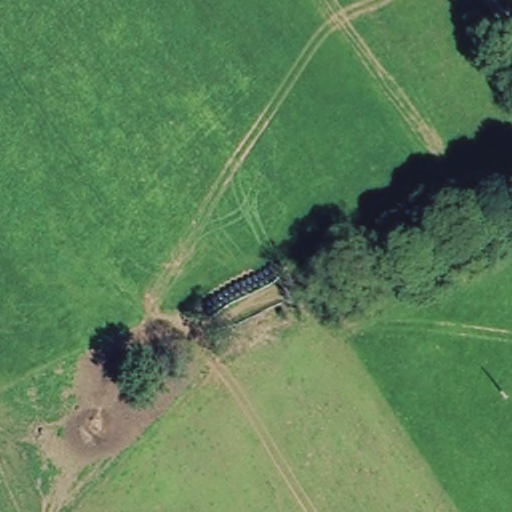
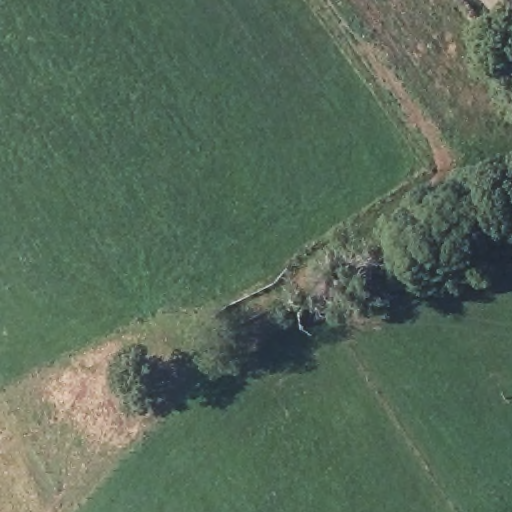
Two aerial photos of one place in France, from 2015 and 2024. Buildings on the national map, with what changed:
[]

